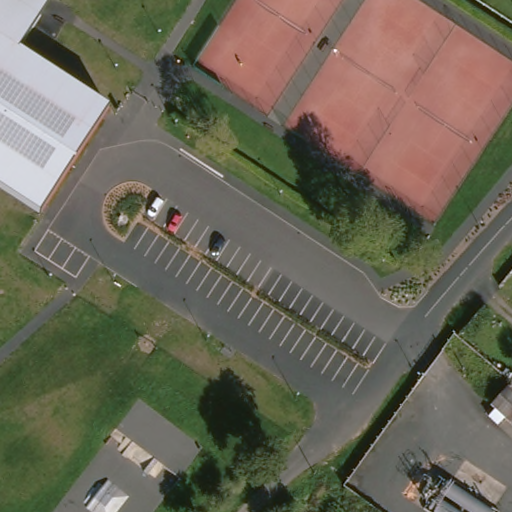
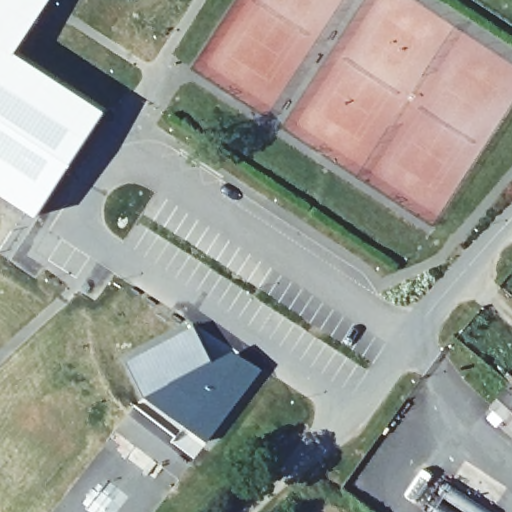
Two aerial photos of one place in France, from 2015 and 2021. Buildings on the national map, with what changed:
unchanged [(21,46),(111,106),(41,210),(0,184),(0,0),(53,0),(21,46)]
new [(195,327),(213,363),(239,355),(262,373),(203,446),(181,428),(185,421),(168,386),(143,398),(126,361),(195,327)]
unchanged [(510,421),(506,426),(490,413),(512,388),(512,424),(510,421)]

